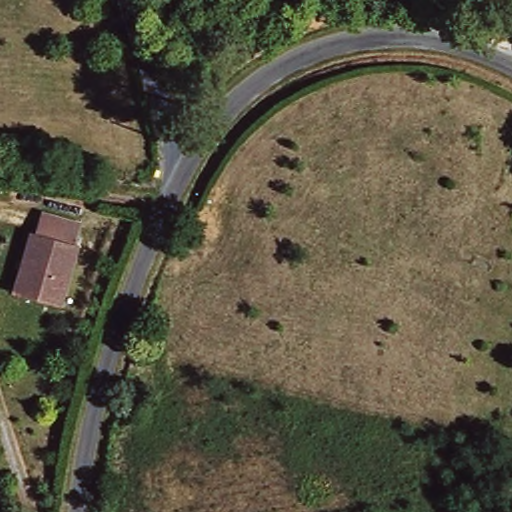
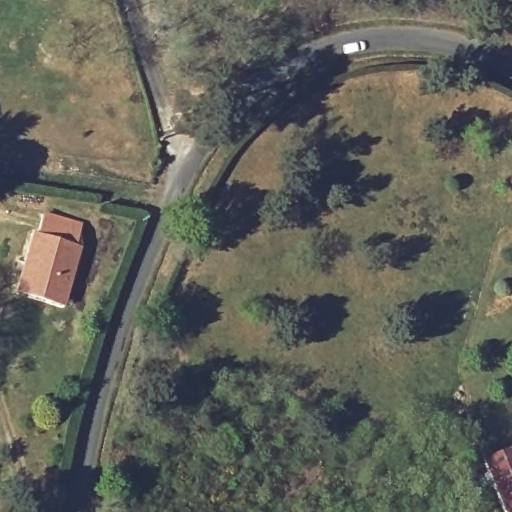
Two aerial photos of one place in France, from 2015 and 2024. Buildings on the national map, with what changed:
unchanged [(21,242),(27,242),(29,223),(70,228),(69,247),(72,248),(65,311),(28,309),(15,307),(21,242)]
new [(492,481),(483,486),(479,476),(489,472),(483,457),(512,446),(512,512),(505,512),(492,481)]

